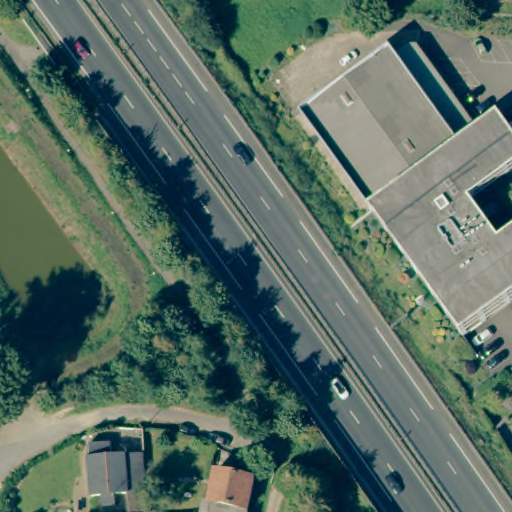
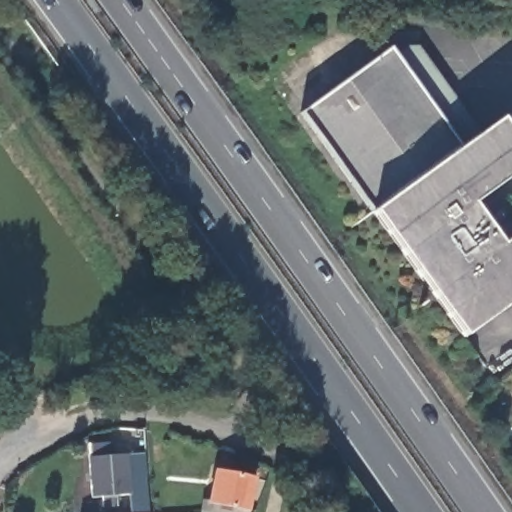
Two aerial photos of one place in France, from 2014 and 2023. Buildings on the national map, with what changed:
unchanged [(370,204),(301,107),(391,44),(419,45),(480,129),(498,117),(512,137),(512,169),(473,196),(500,237),(512,229),(512,298),(461,333),(370,204)]
unchanged [(147,504),(133,505),(132,491),(95,493),(91,442),(112,440),(113,454),(144,453),(147,504)]
unchanged [(206,499),(211,499),(219,469),(256,476),(249,508),(248,512),(204,512),(206,499)]

